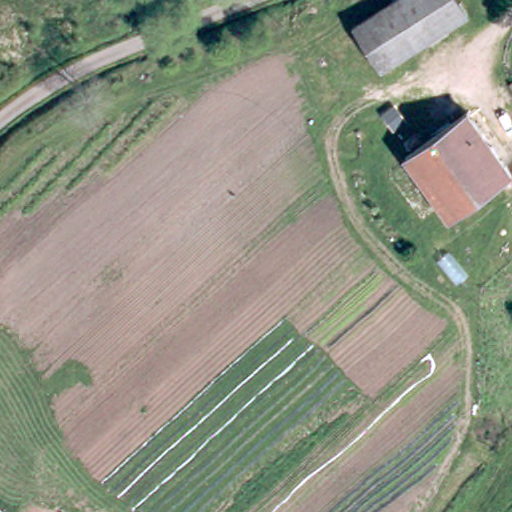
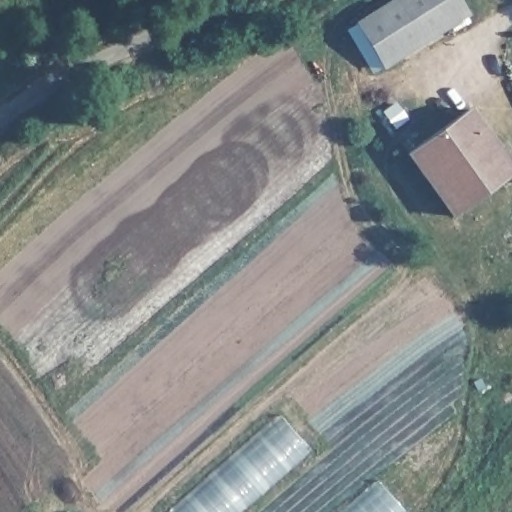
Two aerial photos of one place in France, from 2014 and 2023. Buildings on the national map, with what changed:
unchanged [(357,27),(397,0),(465,0),(472,10),(386,70),(357,27)]
unchanged [(459,220),(413,156),(474,112),(512,165),(512,182),(459,220)]
new [(312,449),(241,512),(170,512),(281,415),(312,449)]
new [(406,512),(342,512),(379,480),(406,512)]
unchanged [(73,512),(67,512),(69,510),(73,512)]

